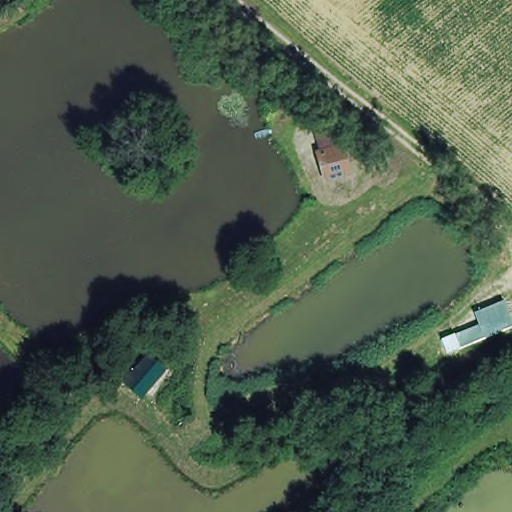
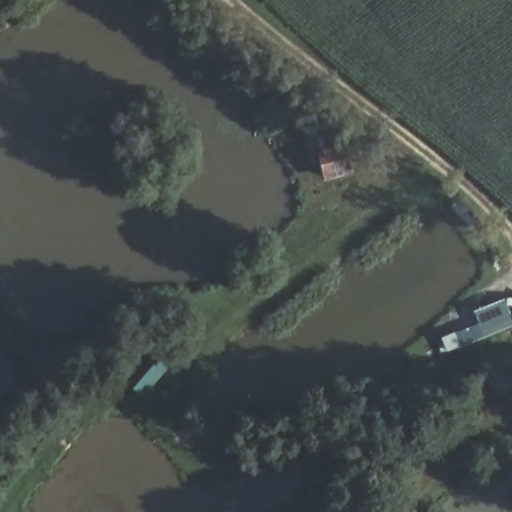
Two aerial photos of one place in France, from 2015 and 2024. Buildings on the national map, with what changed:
unchanged [(504,302),(512,329),(482,340),(474,314),(504,302)]
unchanged [(147,356),(160,370),(145,386),(132,372),(147,356)]

